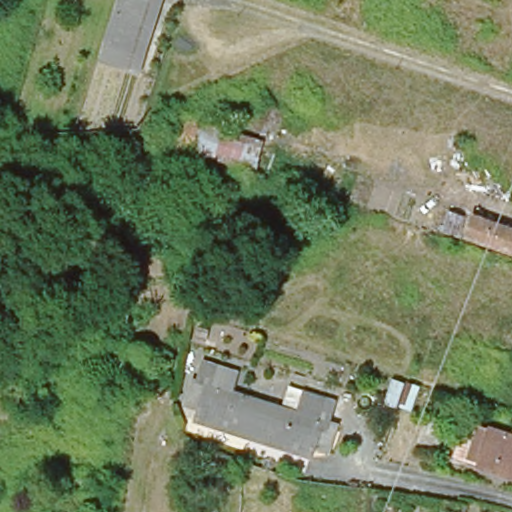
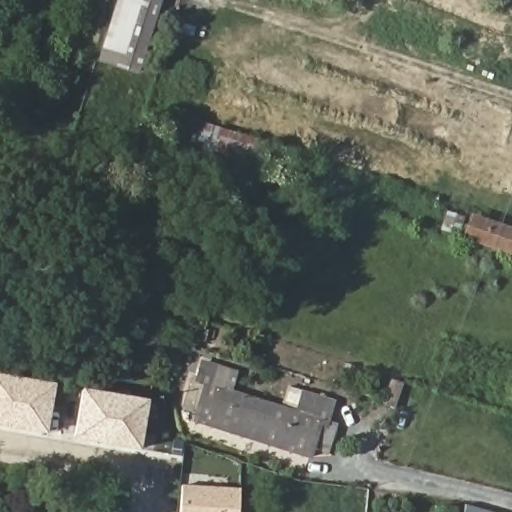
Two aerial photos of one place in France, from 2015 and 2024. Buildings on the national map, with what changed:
unchanged [(31,15),(5,5),(6,0),(4,0),(35,0),(31,15)]
unchanged [(101,66),(107,47),(123,0),(163,0),(145,58),(139,79),(101,66)]
unchanged [(167,139),(178,104),(266,132),(255,167),(247,165),(167,139)]
unchanged [(512,253),(461,236),(467,219),(512,233),(512,253)]
unchanged [(122,297),(134,300),(127,325),(117,321),(122,297)]
unchanged [(148,385),(114,375),(120,349),(131,351),(134,340),(147,343),(146,355),(154,357),(148,385)]
unchanged [(204,384),(205,379),(211,363),(228,369),(222,385),(221,390),(293,412),(295,407),(300,391),(324,400),(319,415),(306,457),(191,421),(204,384)]
new [(46,435),(0,426),(0,375),(55,385),(46,435)]
new [(139,450),(72,439),(81,390),(147,401),(139,450)]
demolished [(491,428),(512,435),(512,474),(480,464),(481,460),(491,428)]
new [(240,487),(239,508),(238,512),(180,512),(180,505),(181,485),(240,487)]

